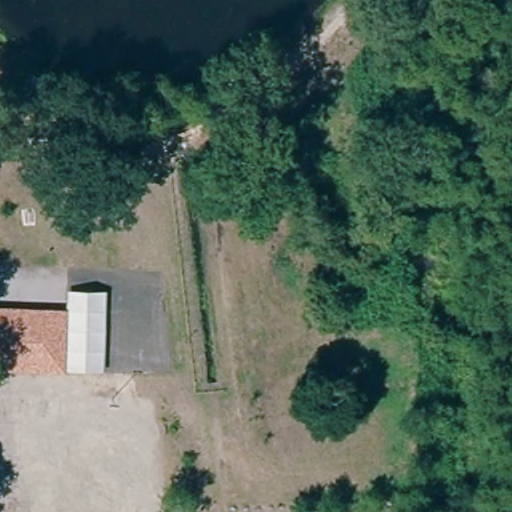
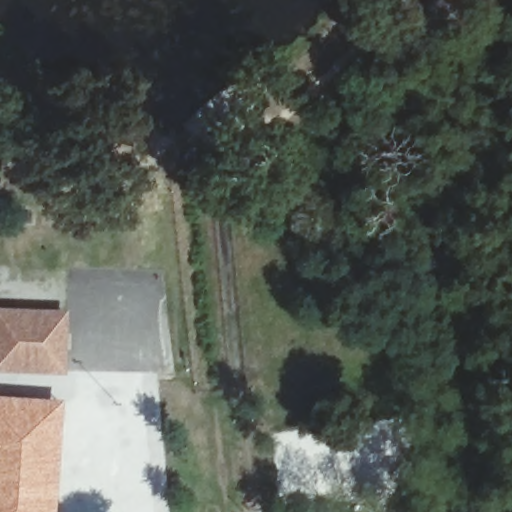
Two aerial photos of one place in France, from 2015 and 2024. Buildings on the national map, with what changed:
unchanged [(0,368),(0,309),(23,308),(21,367),(0,368)]
unchanged [(23,308),(56,310),(55,368),(21,367),(23,308)]
new [(56,512),(0,512),(0,393),(64,397),(56,512)]

